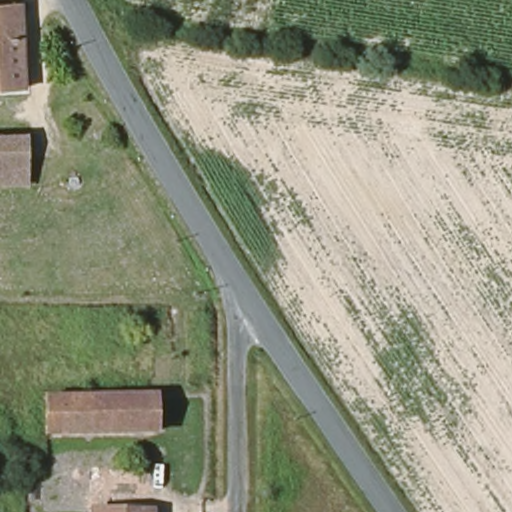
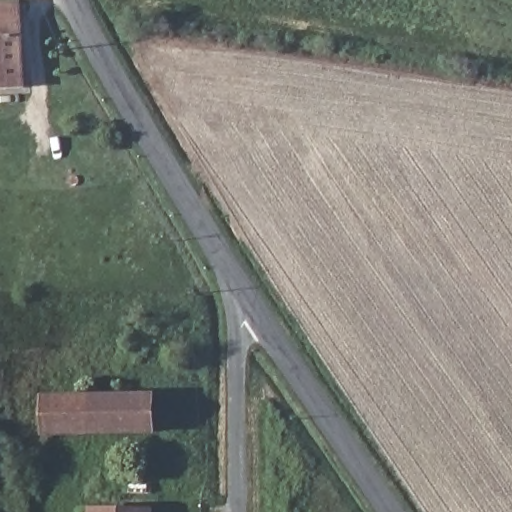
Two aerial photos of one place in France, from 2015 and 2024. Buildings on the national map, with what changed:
unchanged [(27,7),(27,89),(0,91),(0,8),(27,7)]
demolished [(0,192),(0,141),(31,141),(32,191),(0,192)]
unchanged [(155,399),(155,435),(96,435),(49,436),(49,402),(155,399)]

